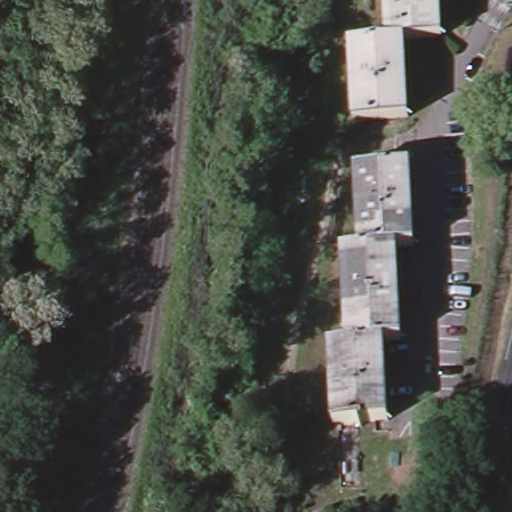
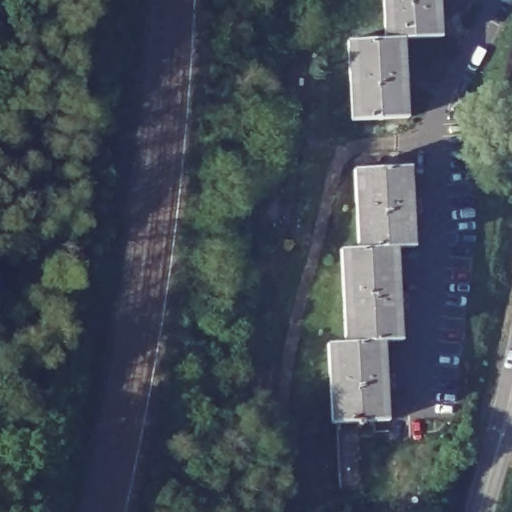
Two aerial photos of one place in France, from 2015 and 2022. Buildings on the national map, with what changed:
unchanged [(439,0),(440,16),(441,34),(430,34),(406,35),(402,36),(386,36),(384,0),(439,0)]
unchanged [(386,36),(402,36),(406,35),(407,76),(409,114),(387,116),(360,117),(354,118),(349,38),(386,36)]
unchanged [(360,168),(411,165),(416,244),(399,244),(397,244),(359,246),(357,175),(357,168),(360,168)]
unchanged [(405,338),(387,339),(347,340),(343,247),(359,246),(397,244),(399,244),(405,338)]
unchanged [(358,422),(358,418),(334,420),(330,341),(347,340),(387,339),(391,416),(365,418),(366,422),(358,422)]

